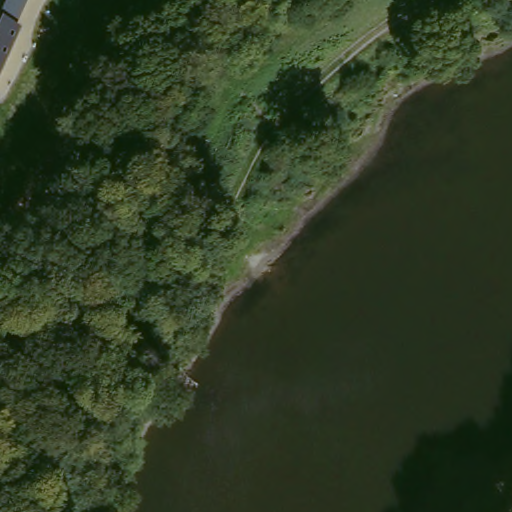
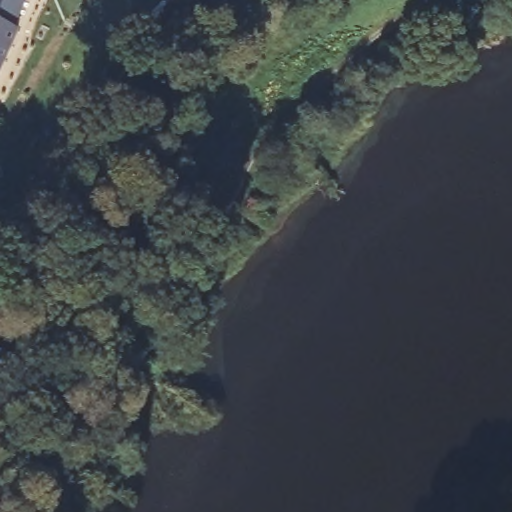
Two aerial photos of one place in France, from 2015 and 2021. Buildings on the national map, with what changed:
unchanged [(19,0),(3,34),(8,36),(0,54),(0,0),(19,0)]

